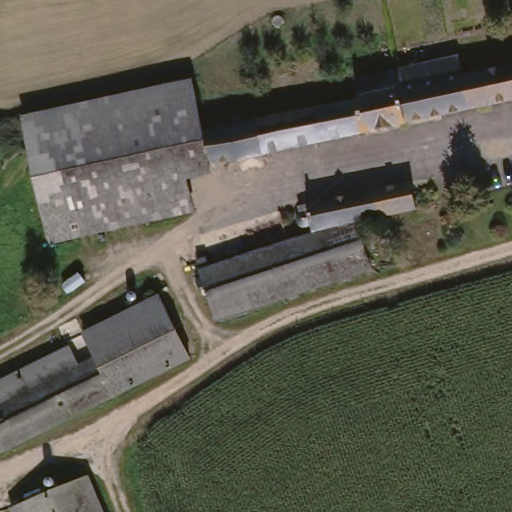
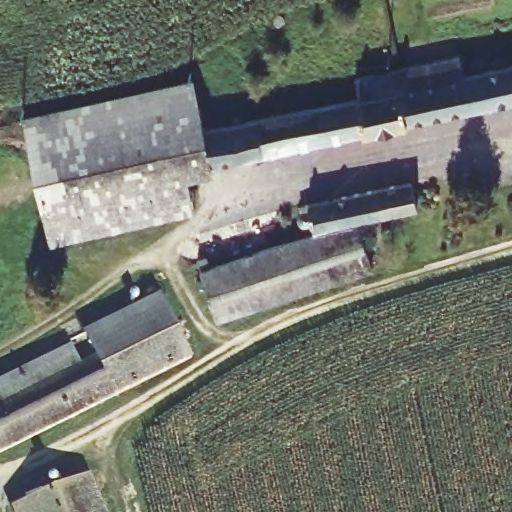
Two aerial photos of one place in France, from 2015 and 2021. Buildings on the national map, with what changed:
unchanged [(457,61),(461,81),(469,112),(407,126),(397,73),(457,61)]
unchanged [(512,69),(512,103),(469,112),(461,81),(512,69)]
unchanged [(354,105),(350,82),(397,73),(407,126),(203,170),(196,139),(354,105)]
unchanged [(180,174),(187,211),(45,246),(16,122),(184,86),(196,139),(203,170),(180,174)]
unchanged [(312,238),(310,230),(300,231),(295,227),(295,220),(300,216),(307,214),(306,210),(413,185),(419,212),(360,227),(371,275),(217,327),(196,268),(204,266),(207,275),(312,238)]
unchanged [(76,345),(88,368),(95,365),(82,337),(157,302),(185,366),(0,454),(0,381),(76,345)]
unchanged [(89,477),(104,512),(10,512),(8,507),(89,477)]

